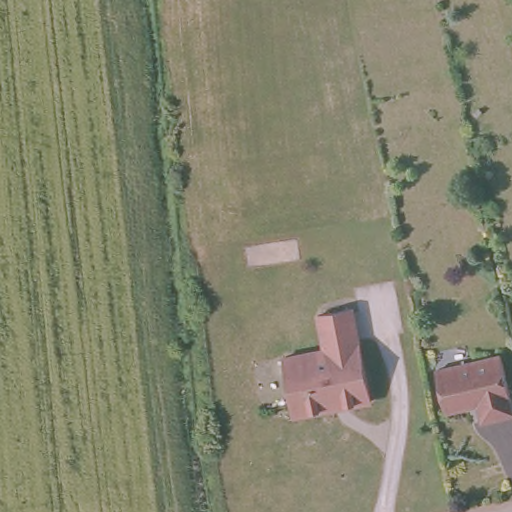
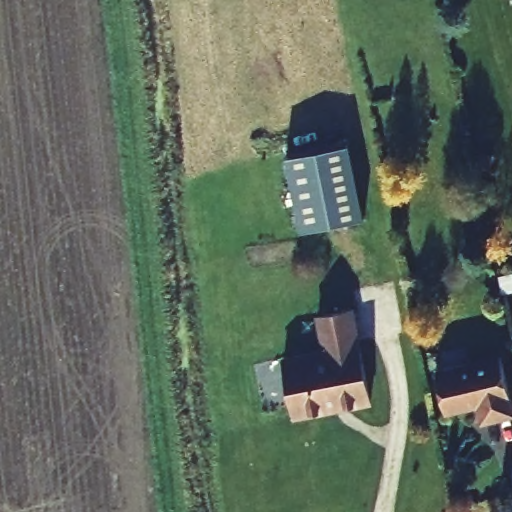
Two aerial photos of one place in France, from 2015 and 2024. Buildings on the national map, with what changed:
new [(352,147),(367,221),(303,234),(288,160),(352,147)]
unchanged [(370,410),(294,424),(285,365),(325,357),(318,322),(352,316),(370,410)]
unchanged [(511,411),(478,417),(473,398),(443,405),(434,365),(498,350),(511,411)]

